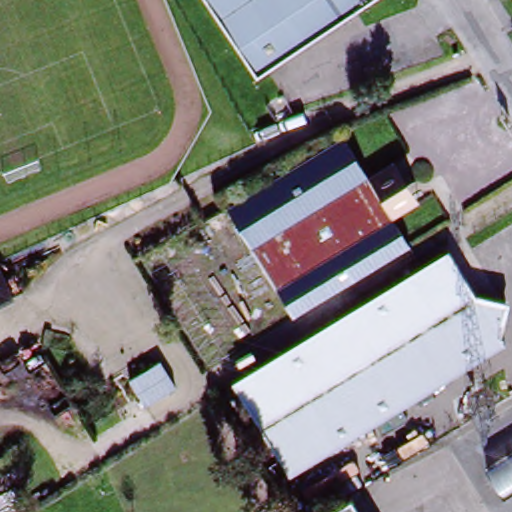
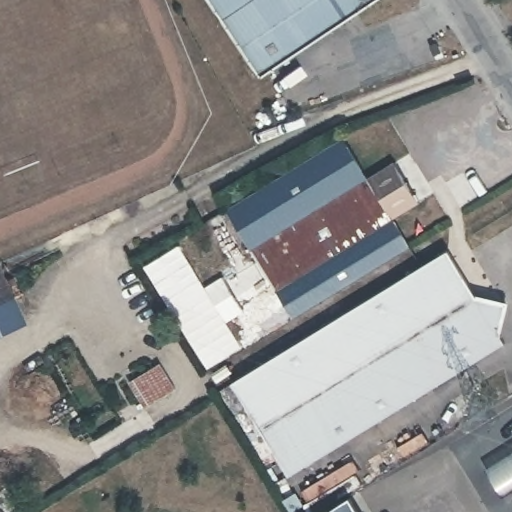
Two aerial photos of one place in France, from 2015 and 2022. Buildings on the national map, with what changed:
unchanged [(205,0),(381,0),(253,78),(205,0)]
unchanged [(384,211),(405,245),(290,317),(222,207),(336,136),(361,176),(384,211)]
unchanged [(386,161),(408,197),(384,211),(361,176),(386,161)]
new [(205,287),(223,276),(227,281),(256,262),(270,285),(242,304),(246,311),(228,322),(243,348),(207,371),(143,267),(179,245),(205,287)]
unchanged [(290,478),(232,385),(286,351),(444,254),(471,298),(501,305),(494,335),(501,346),(290,478)]
unchanged [(0,301),(0,281),(8,298),(0,301)]
new [(160,365),(176,390),(146,409),(130,383),(160,365)]
unchanged [(509,500),(488,470),(512,454),(512,497),(509,500)]
unchanged [(294,495),(302,508),(346,481),(338,469),(347,464),(355,476),(353,477),(359,487),(318,512),(290,512),(284,501),(294,495)]
unchanged [(352,512),(329,512),(346,501),(352,512)]

